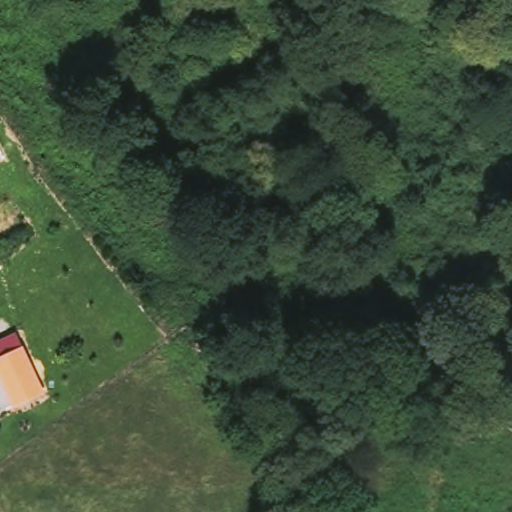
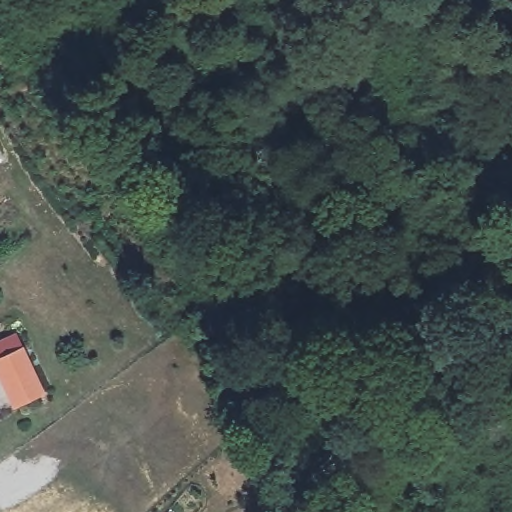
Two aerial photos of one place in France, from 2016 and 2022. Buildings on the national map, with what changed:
unchanged [(13,410),(0,380),(0,340),(15,333),(22,347),(45,394),(13,410)]

